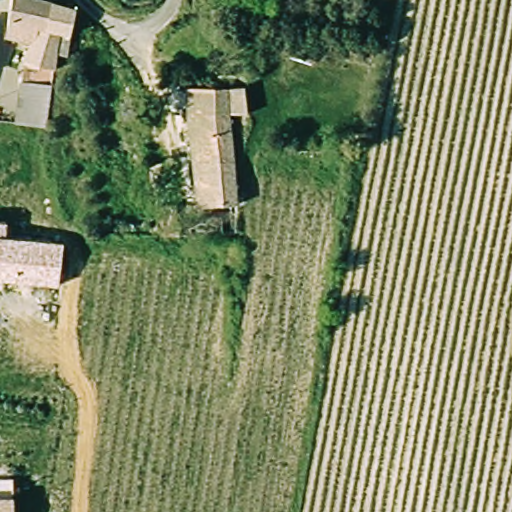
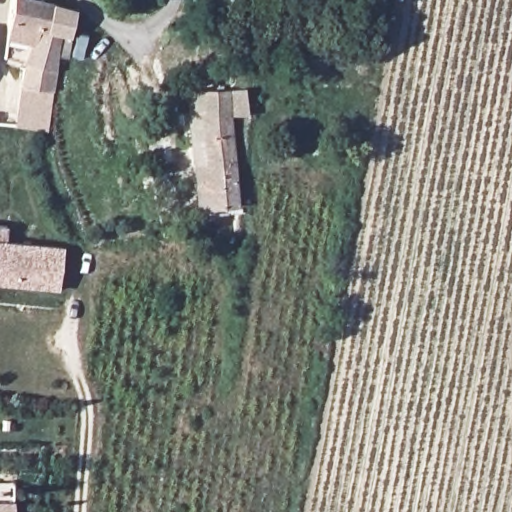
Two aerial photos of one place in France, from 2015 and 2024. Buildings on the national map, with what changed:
unchanged [(24,65),(27,44),(3,36),(9,0),(55,0),(74,3),(73,30),(61,30),(55,56),(53,67),(24,65)]
unchanged [(28,83),(30,71),(50,72),(50,85),(55,85),(51,130),(20,129),(23,83),(28,83)]
unchanged [(231,118),(233,164),(234,209),(193,211),(186,92),(210,93),(231,94),(243,89),(246,118),(231,118)]
unchanged [(60,292),(0,286),(0,227),(10,228),(9,242),(65,249),(60,292)]
unchanged [(16,512),(0,512),(0,505),(16,505),(16,512)]

